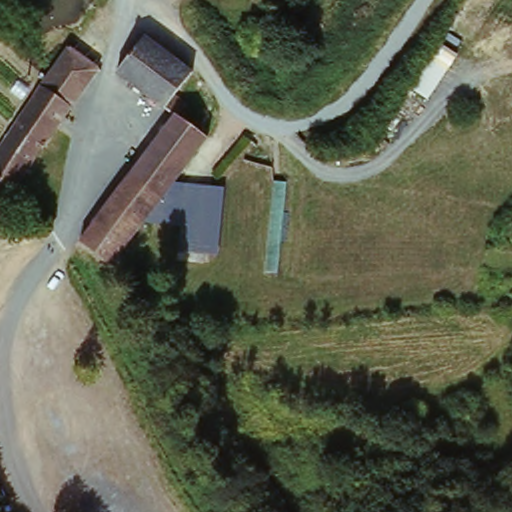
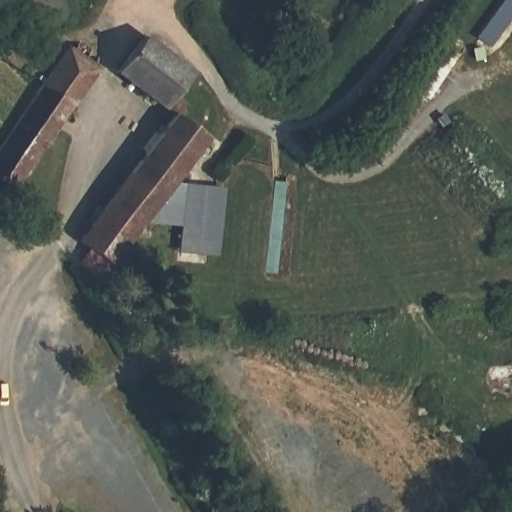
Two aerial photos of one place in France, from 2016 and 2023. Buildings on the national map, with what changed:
new [(502,0),(512,0),(512,15),(490,47),(475,39),(502,0)]
unchanged [(81,238),(174,118),(116,73),(145,36),(194,75),(174,100),(186,108),(178,122),(204,142),(111,261),(81,238)]
unchanged [(75,107),(48,86),(52,81),(74,52),(99,73),(75,107)]
unchanged [(1,206),(0,206),(0,148),(48,86),(75,107),(1,206)]
unchanged [(215,259),(174,247),(198,162),(239,174),(215,259)]

